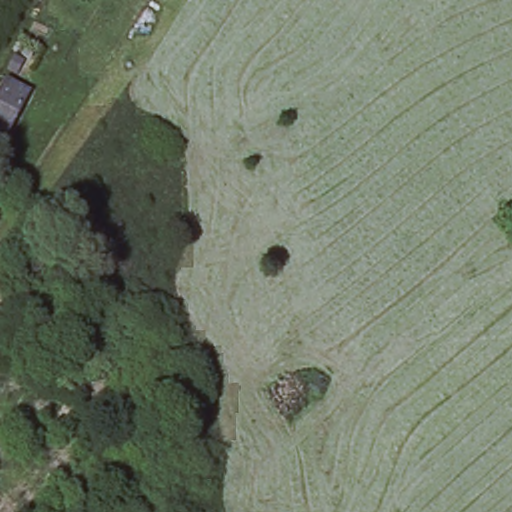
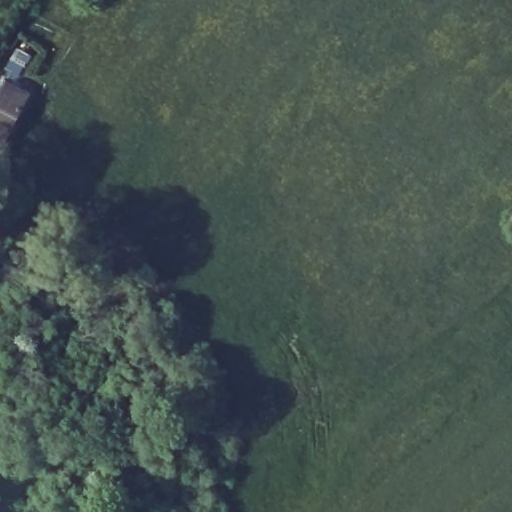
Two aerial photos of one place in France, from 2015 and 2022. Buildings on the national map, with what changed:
unchanged [(30,87),(4,140),(0,138),(0,91),(8,76),(30,87)]

